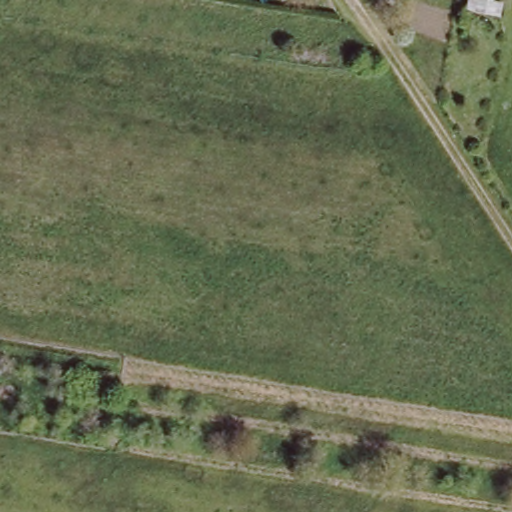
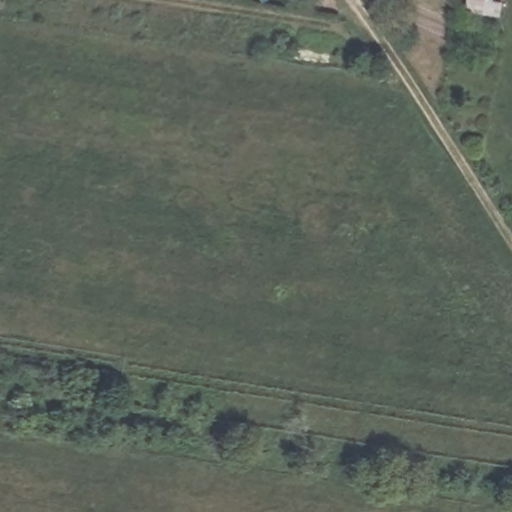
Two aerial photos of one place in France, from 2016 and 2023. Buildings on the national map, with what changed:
unchanged [(497,5),(494,19),(462,11),(464,0),(485,0),(485,2),(497,5)]

